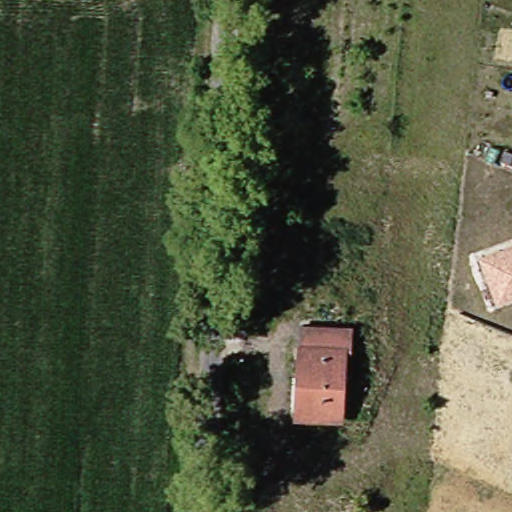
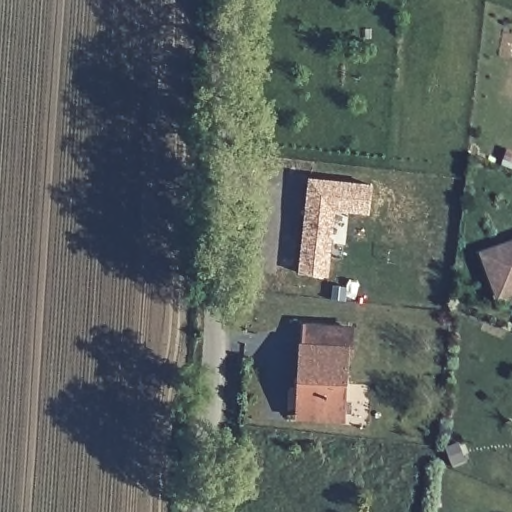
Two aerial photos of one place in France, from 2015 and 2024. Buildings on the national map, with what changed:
new [(369,215),(336,211),(330,277),(299,273),(308,176),(373,183),(369,215)]
demolished [(322,223),(367,226),(367,217),(380,219),(377,256),(360,254),(357,271),(341,270),(344,251),(321,249),(322,223)]
unchanged [(499,300),(482,253),(512,242),(512,295),(499,300)]
unchanged [(352,325),(343,417),(297,412),(303,321),(352,325)]

